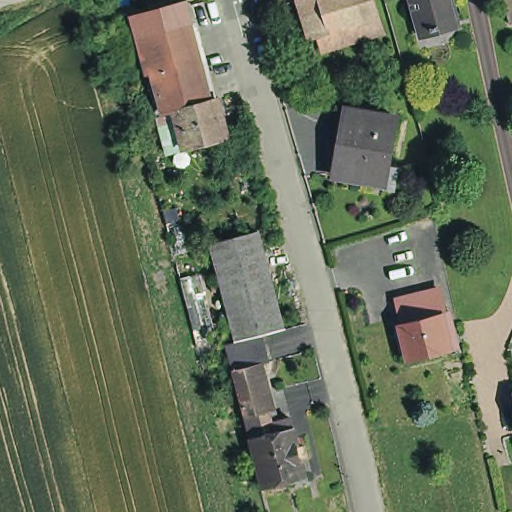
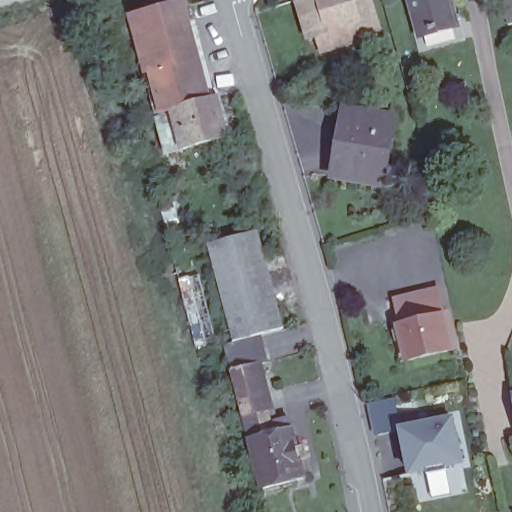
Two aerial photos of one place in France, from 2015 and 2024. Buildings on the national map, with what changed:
unchanged [(311,40),(298,0),(374,0),(377,9),(385,33),(384,33),(322,51),(318,38),(311,40)]
unchanged [(444,0),(452,27),(433,32),(434,34),(426,36),(426,34),(415,36),(405,0),(444,0)]
unchanged [(504,0),(512,0),(512,19),(510,20),(504,0)]
unchanged [(185,65),(193,63),(203,100),(170,110),(161,112),(141,34),(138,20),(164,13),(168,26),(175,25),(185,65)]
unchanged [(212,97),(223,138),(180,149),(170,110),(203,100),(212,97)]
unchanged [(390,182),(378,180),(379,175),(329,166),(341,99),(390,106),(382,155),(394,157),(390,182)]
unchanged [(211,245),(258,232),(284,329),(236,342),(211,245)]
unchanged [(390,303),(431,292),(436,309),(441,308),(443,314),(445,313),(454,351),(405,363),(390,303)]
unchanged [(271,424),(289,419),(305,477),(264,488),(247,425),(248,425),(246,416),(234,372),(226,345),(258,337),(265,364),(253,367),(265,411),(268,410),(271,424)]
new [(452,415),(462,462),(403,477),(393,428),(452,415)]

